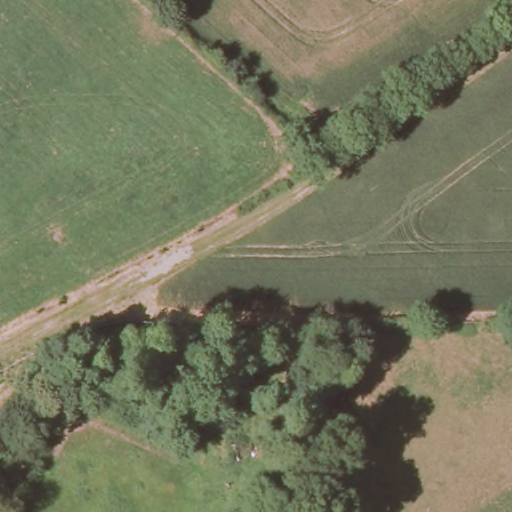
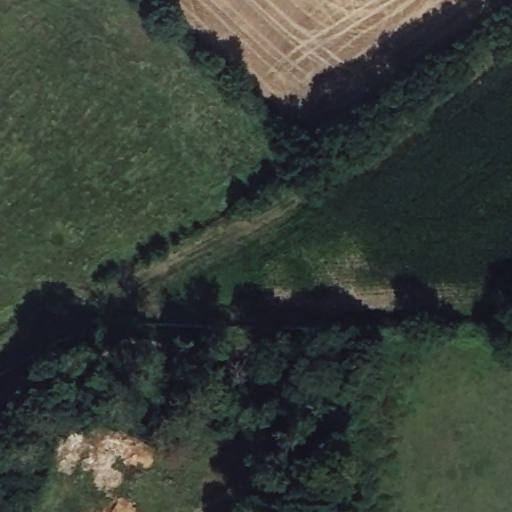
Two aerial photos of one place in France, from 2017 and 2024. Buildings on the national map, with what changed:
unchanged [(27,416),(21,413),(22,405),(28,402),(33,405),(33,413),(27,416)]

